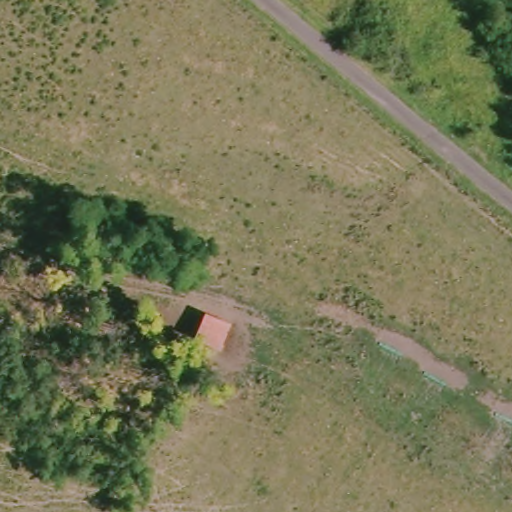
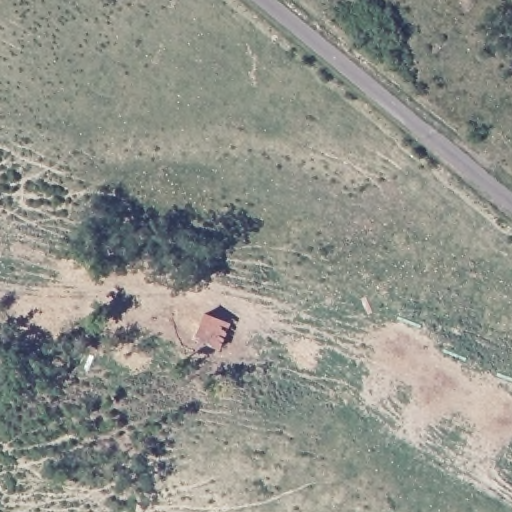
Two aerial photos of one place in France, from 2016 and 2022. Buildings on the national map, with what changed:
unchanged [(190,334),(203,308),(230,323),(219,349),(190,334)]

